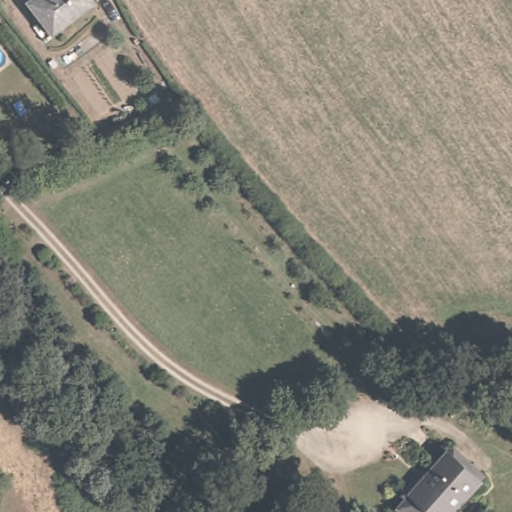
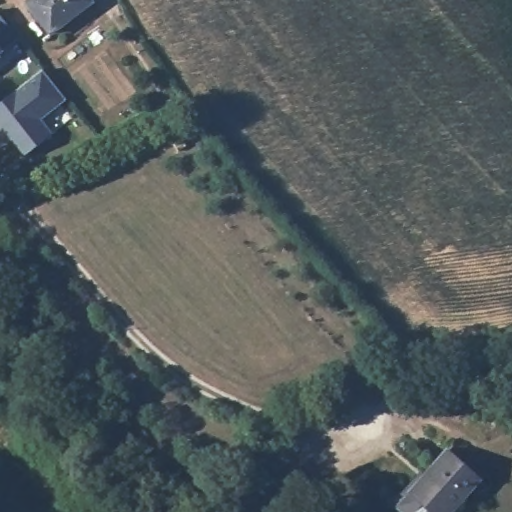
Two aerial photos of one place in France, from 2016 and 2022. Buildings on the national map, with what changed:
unchanged [(29,0),(89,0),(90,2),(50,34),(26,3),(29,0)]
new [(16,39),(3,51),(0,53),(0,18),(16,39)]
new [(42,71),(65,101),(41,119),(52,134),(23,156),(0,129),(0,103),(42,71)]
unchanged [(480,477),(448,512),(403,512),(394,503),(446,445),(480,477)]

